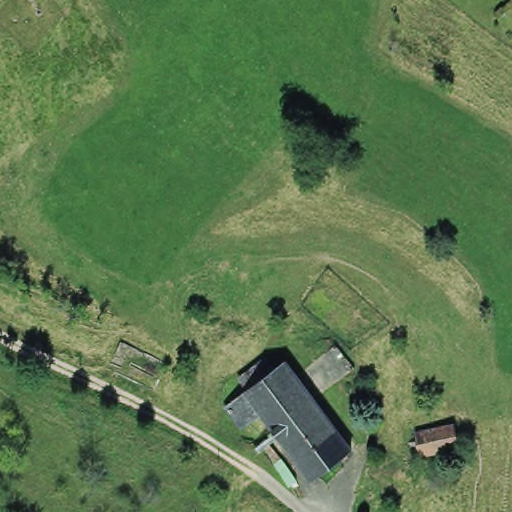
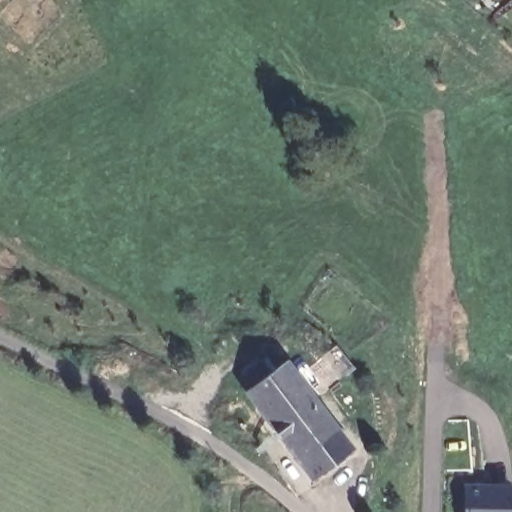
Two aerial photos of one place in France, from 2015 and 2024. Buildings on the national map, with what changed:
unchanged [(108,366),(123,337),(167,359),(153,388),(108,366)]
unchanged [(239,421),(223,396),(244,380),(237,370),(262,353),(269,363),(284,353),(346,444),(308,473),(261,406),(239,421)]
new [(512,485),(512,512),(462,512),(463,484),(512,485)]

